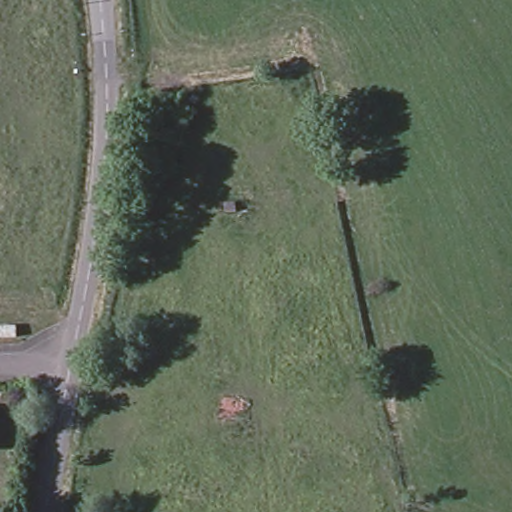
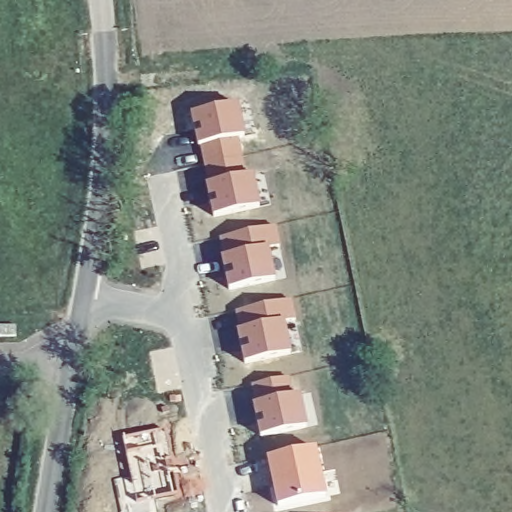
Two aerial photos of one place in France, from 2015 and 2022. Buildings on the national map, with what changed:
new [(233,102),(241,134),(234,136),(238,155),(202,163),(198,144),(195,144),(188,111),(233,102)]
new [(238,155),(242,174),(249,173),(257,205),(210,215),(204,182),(207,182),(202,163),(238,155)]
new [(272,224),(277,244),(265,247),(272,279),(227,288),(220,256),(222,255),(218,236),(272,224)]
new [(288,297),(293,317),(282,320),(288,352),(243,362),(236,329),(238,329),(234,309),(288,297)]
unchanged [(12,320),(13,330),(0,330),(0,320),(12,320)]
new [(286,375),(290,394),(297,393),(305,425),(259,435),(252,403),(254,402),(250,383),(286,375)]
demolished [(227,406),(257,404),(260,424),(229,425),(227,406)]
new [(166,430),(172,458),(163,458),(167,471),(173,469),(178,495),(156,499),(137,503),(125,437),(166,430)]
new [(313,446),(324,495),(277,505),(266,456),(313,446)]

